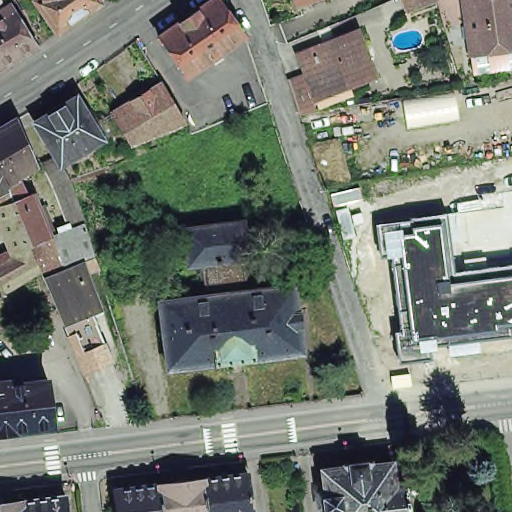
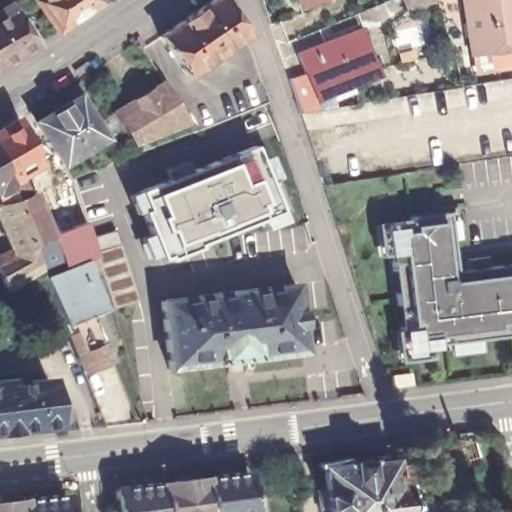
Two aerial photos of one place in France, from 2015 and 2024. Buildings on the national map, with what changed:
unchanged [(64,31),(45,0),(105,0),(106,1),(64,31)]
unchanged [(164,35),(200,10),(215,0),(227,0),(250,34),(191,74),(164,35)]
unchanged [(311,0),(305,3),(303,0),(311,0)]
unchanged [(404,0),(436,0),(408,11),(404,0)]
unchanged [(470,49),(462,0),(512,0),(512,43),(470,49)]
unchanged [(21,8),(43,44),(0,72),(0,16),(19,4),(21,8)]
unchanged [(347,104),(321,109),(305,112),(294,77),(310,71),(301,51),(364,28),(382,74),(355,85),(358,102),(347,104)]
unchanged [(472,69),(470,49),(512,43),(512,63),(472,69)]
unchanged [(185,125),(147,140),(128,148),(110,116),(161,87),(185,125)]
unchanged [(81,95),(100,125),(106,121),(111,130),(105,134),(107,138),(65,163),(40,121),(81,95)]
unchanged [(49,274),(45,266),(12,287),(11,288),(0,264),(0,257),(16,250),(12,239),(0,211),(0,202),(5,200),(0,189),(0,121),(11,114),(15,121),(22,118),(37,153),(42,164),(22,174),(30,189),(33,187),(35,193),(38,192),(55,234),(75,226),(89,220),(92,229),(100,254),(104,267),(93,270),(107,307),(97,310),(69,322),(49,274)]
new [(142,195),(260,150),(262,164),(273,160),(281,180),(271,184),(290,225),(267,234),(264,224),(201,249),(203,254),(172,265),(171,263),(164,265),(162,260),(150,265),(142,242),(152,239),(145,217),(137,219),(131,199),(142,195)]
unchanged [(478,344),(480,354),(449,357),(447,345),(435,346),(435,349),(430,351),(430,359),(398,363),(395,332),(400,331),(391,257),(385,257),(380,257),(376,224),(446,214),(454,273),(512,266),(512,340),(478,344)]
demolished [(203,269),(189,271),(184,233),(245,225),(250,263),(243,264),(247,294),(207,300),(203,269)]
unchanged [(300,314),(302,332),(299,332),(302,357),(260,363),(236,366),(195,371),(168,375),(158,307),(207,300),(247,294),(294,289),(297,314),(300,314)]
unchanged [(117,358),(89,369),(69,322),(97,310),(117,358)]
unchanged [(20,384),(48,380),(53,380),(59,423),(21,428),(21,429),(0,432),(0,430),(0,381),(19,379),(20,384)]
unchanged [(407,491),(409,512),(317,512),(315,497),(324,495),(321,472),(343,470),(344,469),(372,466),(372,469),(392,467),(395,492),(407,491)]
unchanged [(202,479),(248,473),(252,512),(207,512),(202,479)]
unchanged [(207,512),(163,512),(160,484),(202,479),(207,512)]
unchanged [(163,512),(118,512),(115,489),(160,484),(163,512)]
unchanged [(68,512),(22,512),(20,502),(65,496),(68,512)]
unchanged [(22,512),(0,512),(0,504),(20,502),(22,512)]

